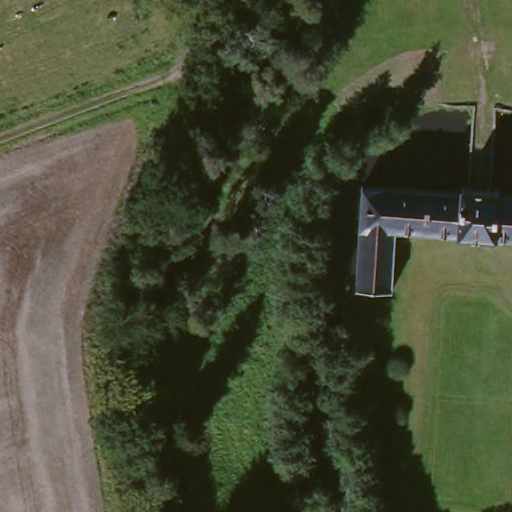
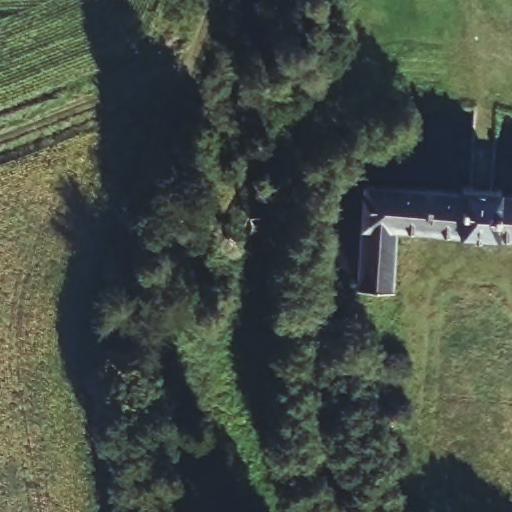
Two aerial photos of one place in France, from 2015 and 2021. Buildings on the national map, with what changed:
unchanged [(389,292),(353,290),(360,187),(466,197),(467,191),(489,193),(489,199),(512,201),(512,242),(484,240),(398,232),(394,231),(389,292)]

